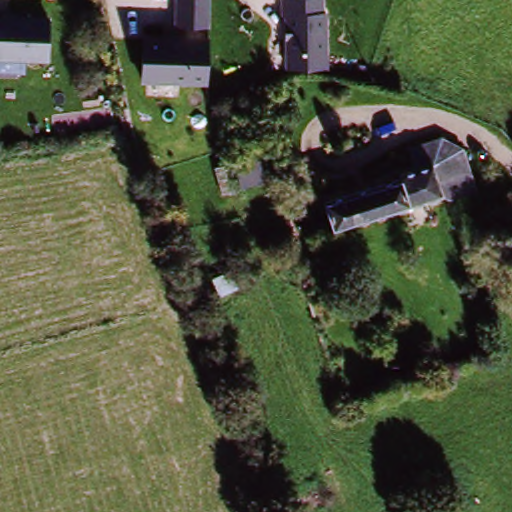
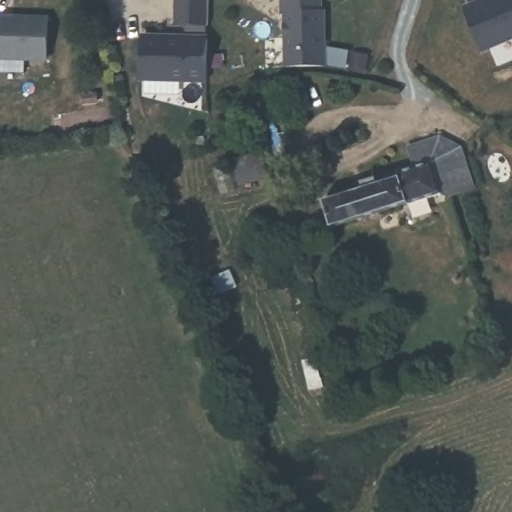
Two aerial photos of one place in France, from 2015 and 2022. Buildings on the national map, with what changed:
unchanged [(177,26),(178,0),(208,0),(207,26),(177,26)]
unchanged [(325,10),(326,66),(286,68),(285,15),(280,15),(279,0),(322,0),(322,10),(325,10)]
new [(512,0),(512,34),(477,48),(462,9),(483,0),(512,0)]
unchanged [(58,59),(0,59),(0,18),(58,18),(58,59)]
unchanged [(207,84),(141,81),(142,34),(207,36),(207,84)]
unchanged [(437,163),(417,169),(406,134),(446,121),(469,157),(478,186),(448,194),(437,163)]
unchanged [(323,204),(399,179),(397,174),(417,169),(437,163),(448,194),(449,195),(332,232),(330,229),(323,204)]

